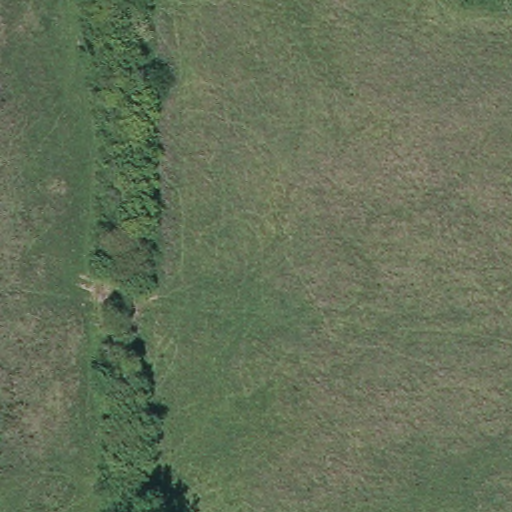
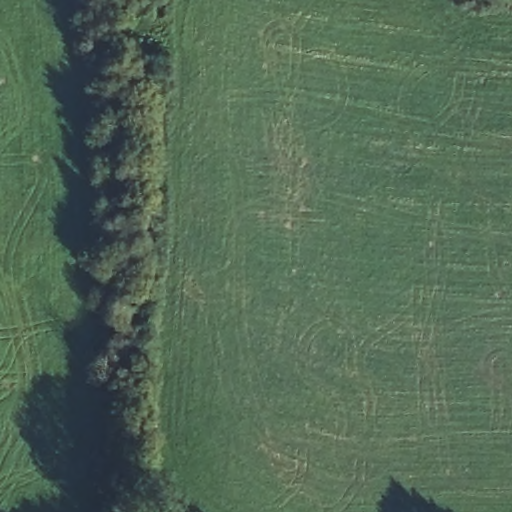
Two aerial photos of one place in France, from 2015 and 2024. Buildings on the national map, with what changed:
[]

